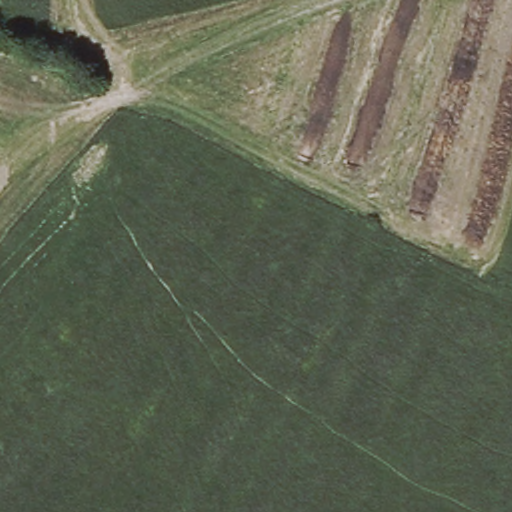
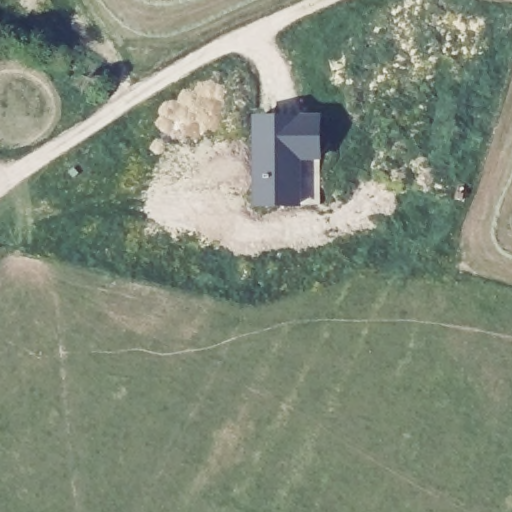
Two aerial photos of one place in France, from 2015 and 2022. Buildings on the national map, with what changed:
new [(320,115),(320,161),(300,161),(300,207),(253,206),(252,115),(320,115)]

